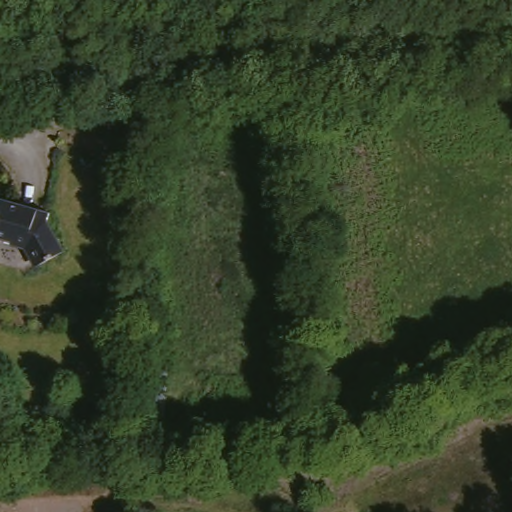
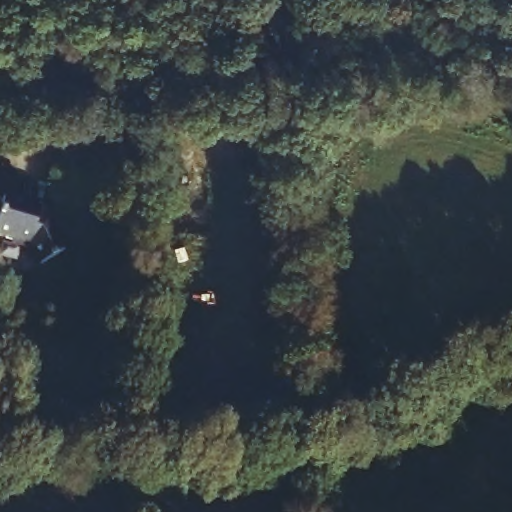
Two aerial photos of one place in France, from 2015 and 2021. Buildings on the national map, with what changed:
unchanged [(42,214),(39,222),(54,252),(29,265),(21,247),(0,241),(0,201),(42,214)]

